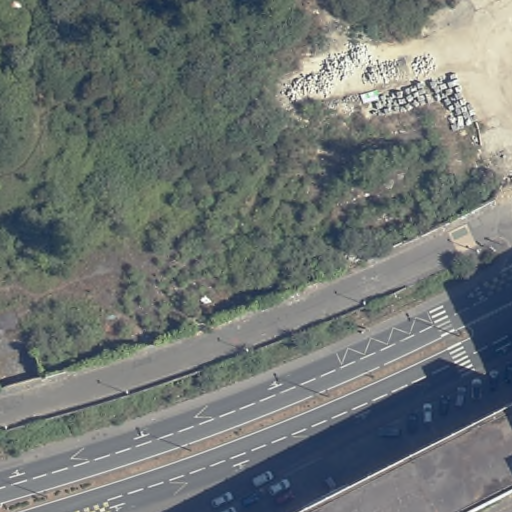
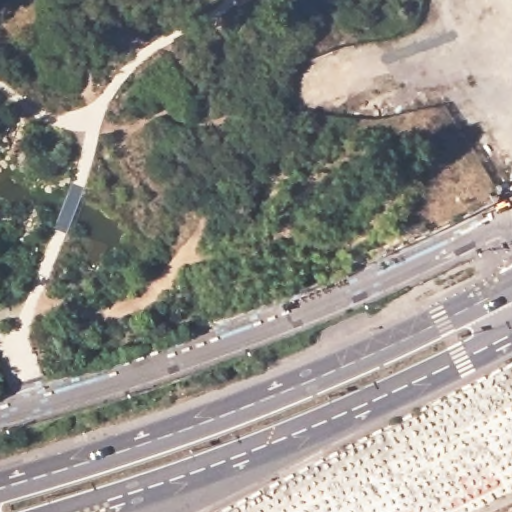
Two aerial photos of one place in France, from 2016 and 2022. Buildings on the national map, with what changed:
demolished [(512,496),(480,512),(305,512),(512,407),(512,496)]

